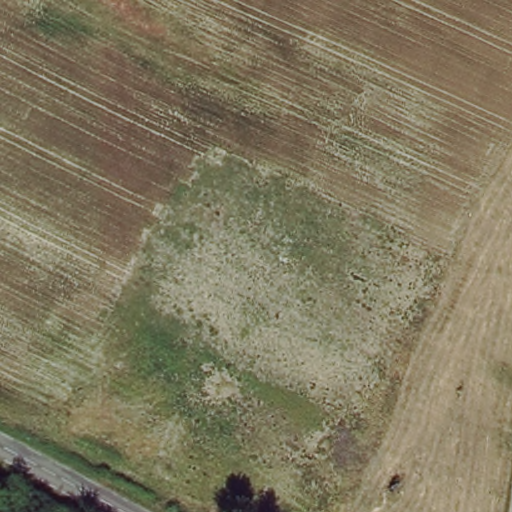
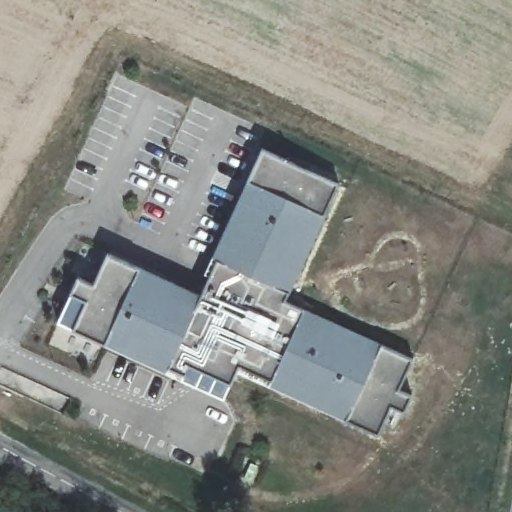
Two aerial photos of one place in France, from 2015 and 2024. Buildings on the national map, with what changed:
new [(194,292),(259,150),(326,181),(276,298),(402,355),(370,426),(232,356),(224,376),(183,355),(178,366),(100,326),(95,336),(67,321),(102,249),(194,292)]

